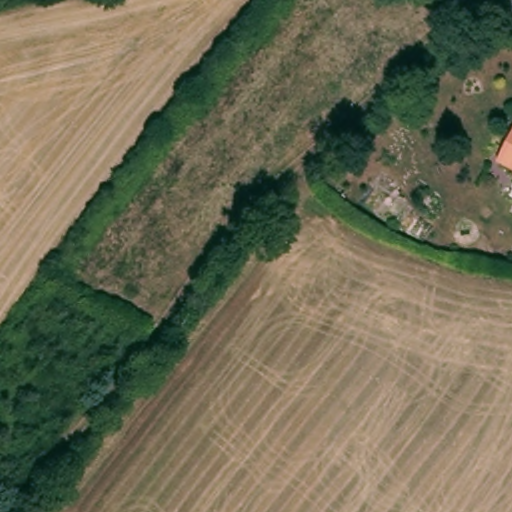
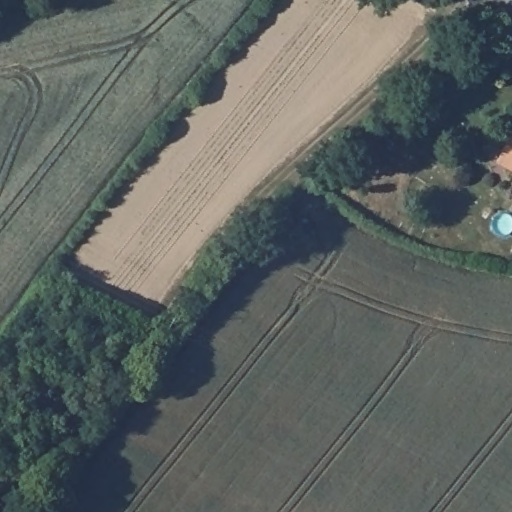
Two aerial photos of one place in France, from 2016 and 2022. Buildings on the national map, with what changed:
unchanged [(512,135),(512,173),(496,164),(512,135)]

